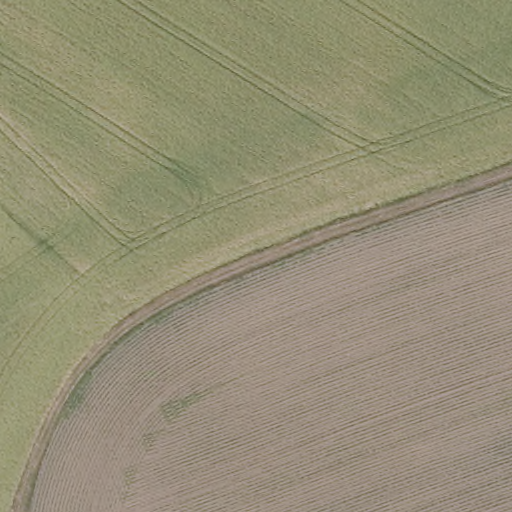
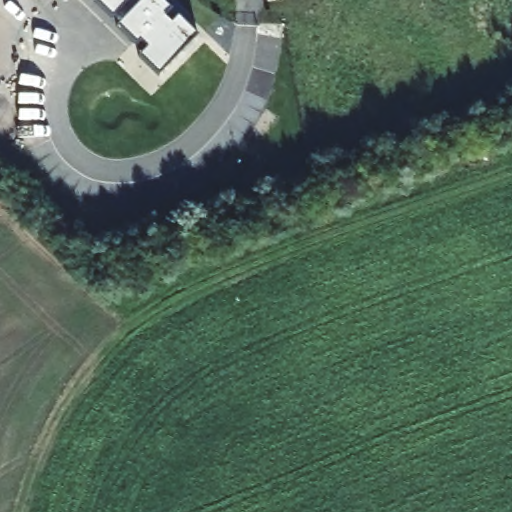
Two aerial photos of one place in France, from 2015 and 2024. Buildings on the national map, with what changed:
new [(165,14),(171,20),(178,12),(198,32),(159,73),(139,54),(147,45),(141,39),(136,44),(116,24),(121,18),(115,12),(111,16),(95,0),(165,0),(171,6),(165,14)]

